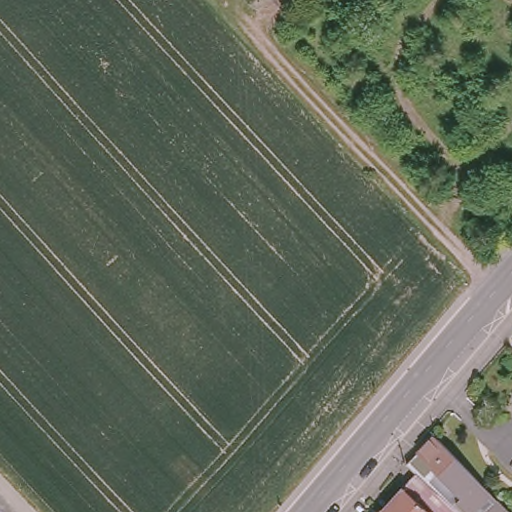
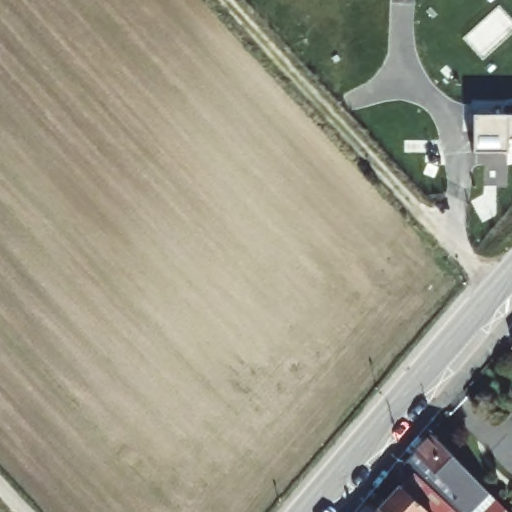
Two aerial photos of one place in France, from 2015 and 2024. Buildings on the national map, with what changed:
new [(510,135),(509,154),(472,152),(474,114),(512,116),(512,136),(510,135)]
unchanged [(509,344),(512,341),(512,348),(509,344)]
unchanged [(512,510),(512,512),(499,512),(495,508),(485,508),(481,512),(464,512),(452,501),(417,469),(407,460),(434,430),(489,486),(512,510)]
unchanged [(452,501),(445,510),(439,505),(434,511),(435,512),(389,512),(382,506),(417,469),(452,501)]
unchanged [(389,512),(377,512),(382,506),(389,512)]

